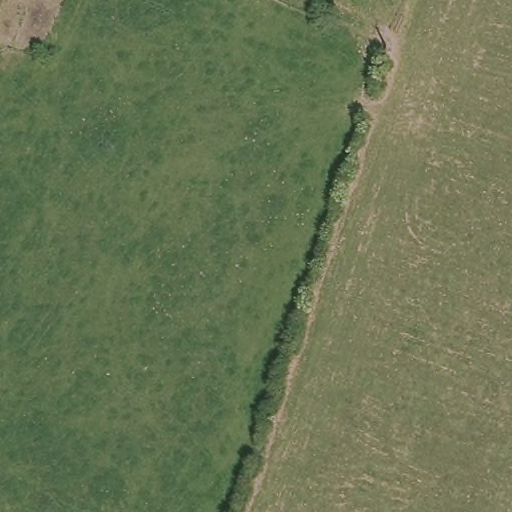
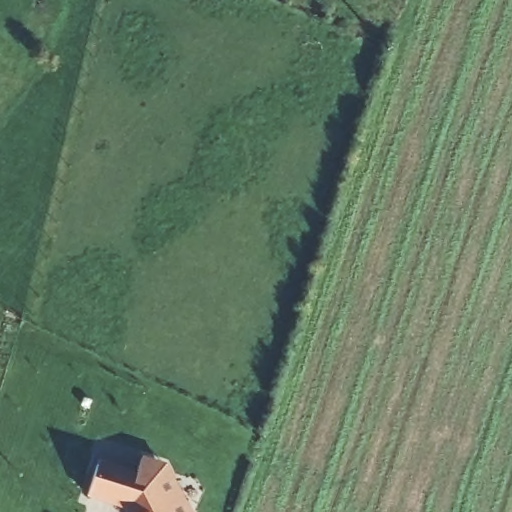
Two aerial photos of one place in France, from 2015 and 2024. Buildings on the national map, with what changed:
new [(142,456),(166,463),(191,512),(128,512),(127,509),(87,497),(100,460),(137,472),(142,456)]

